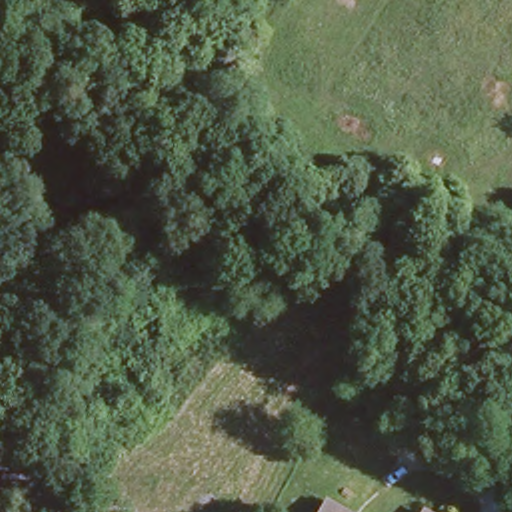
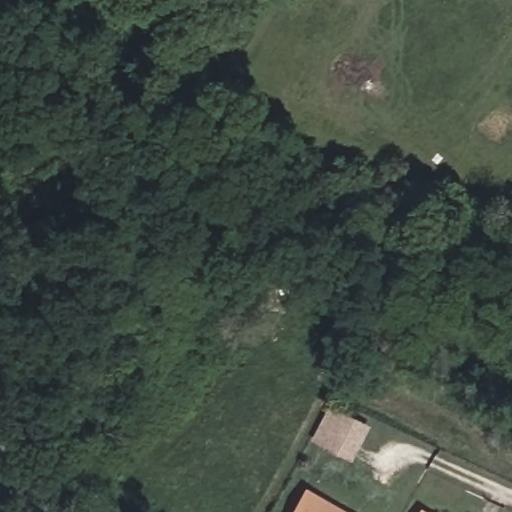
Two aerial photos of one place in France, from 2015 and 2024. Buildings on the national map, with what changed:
new [(351,461),(310,442),(328,403),(370,426),(351,461)]
unchanged [(324,502),(340,512),(318,512),(324,502)]
unchanged [(425,512),(414,512),(417,507),(425,512)]

